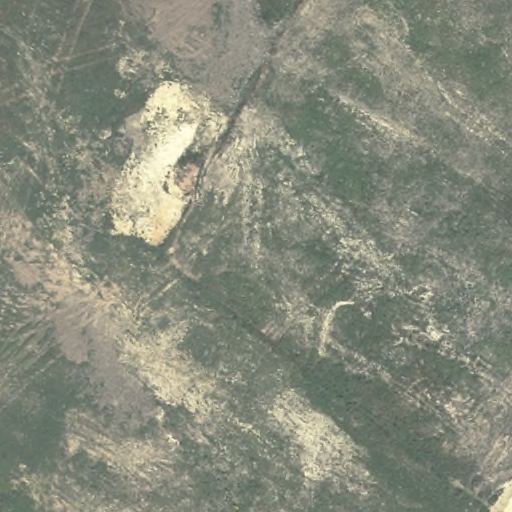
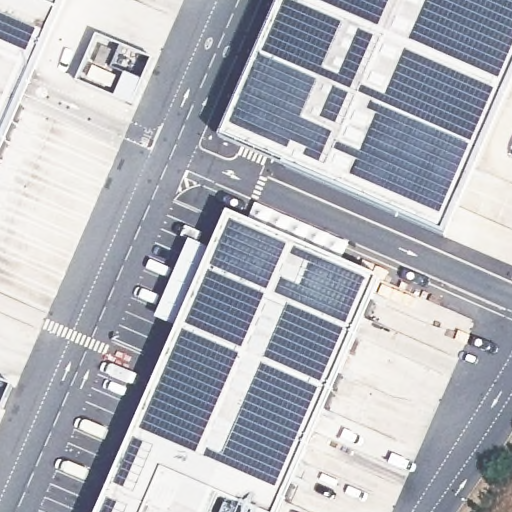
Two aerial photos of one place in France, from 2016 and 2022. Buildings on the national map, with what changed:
new [(0,0),(69,0),(0,158),(0,0)]
new [(284,0),(512,0),(512,86),(446,239),(223,141),(284,0)]
new [(178,332),(155,322),(189,241),(212,252),(228,216),(383,282),(282,512),(100,512),(178,332)]

